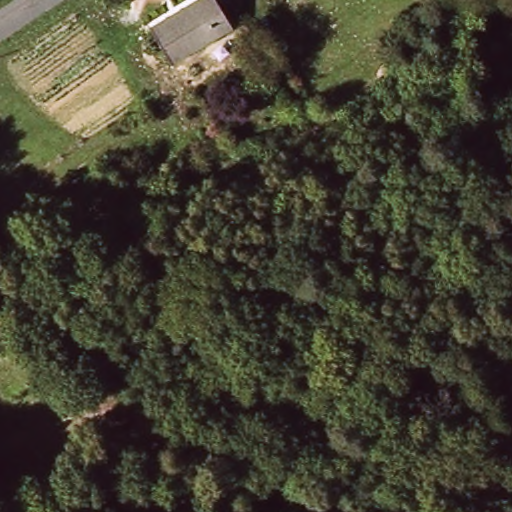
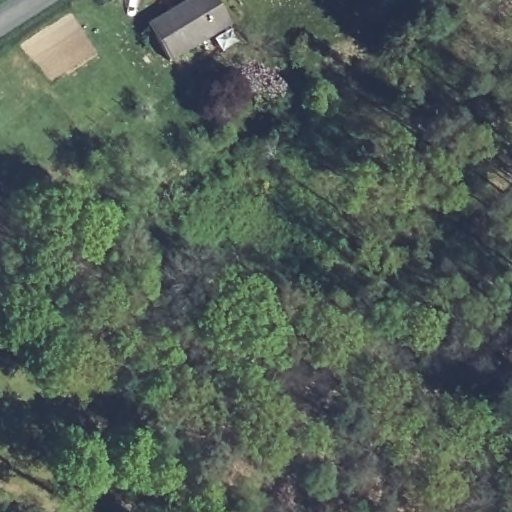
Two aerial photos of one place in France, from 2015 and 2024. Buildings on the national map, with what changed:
unchanged [(235,27),(178,64),(156,30),(202,0),(219,0),(235,27)]

